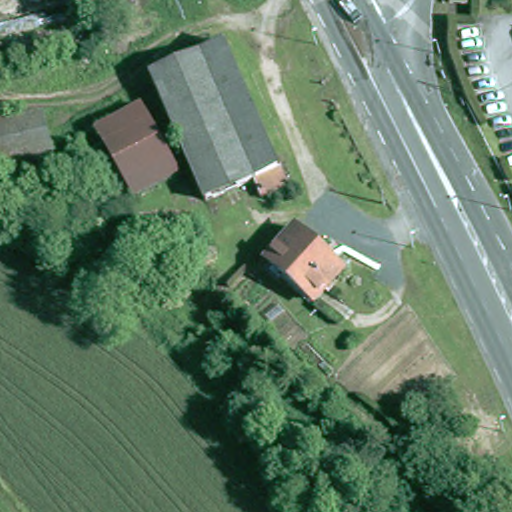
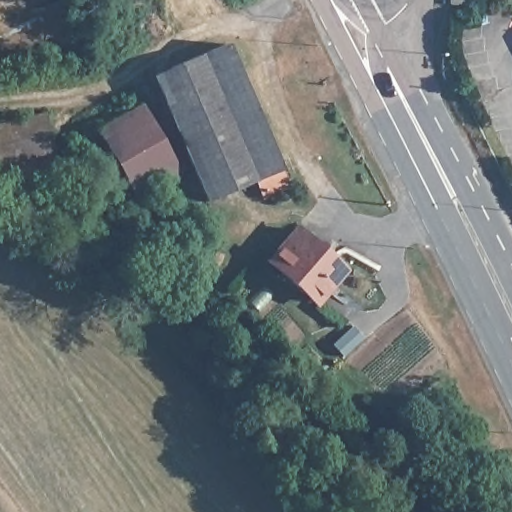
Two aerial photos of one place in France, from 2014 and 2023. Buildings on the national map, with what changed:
unchanged [(224,47),(285,187),(262,197),(253,182),(204,202),(180,147),(195,139),(165,72),(224,47)]
unchanged [(150,79),(165,72),(195,139),(180,147),(150,79)]
unchanged [(120,208),(82,141),(143,107),(181,175),(120,208)]
unchanged [(0,180),(0,141),(48,129),(59,167),(0,180)]
unchanged [(169,232),(154,232),(155,208),(169,209),(169,232)]
unchanged [(317,307),(270,267),(299,235),(346,276),(317,307)]

